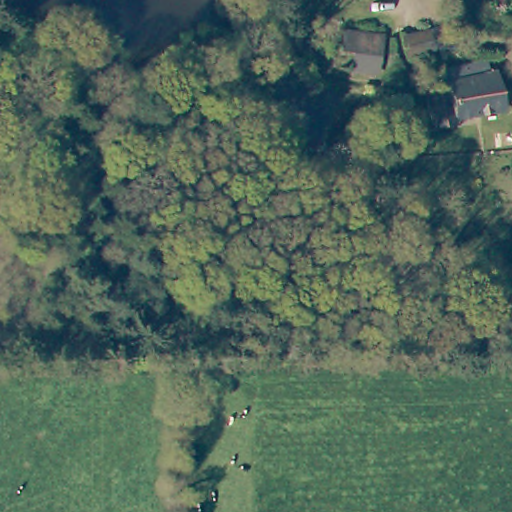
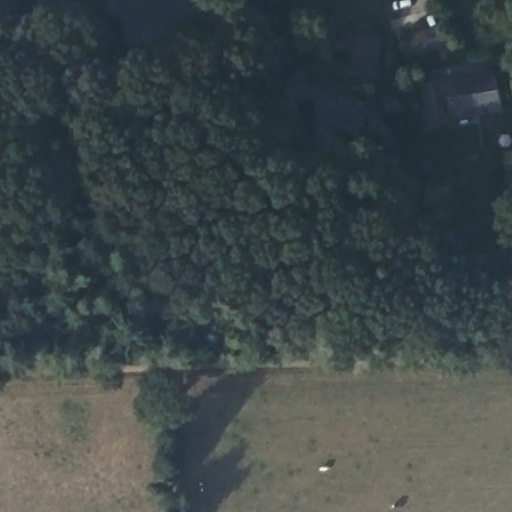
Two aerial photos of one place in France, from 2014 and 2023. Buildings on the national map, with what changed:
unchanged [(378,39),(372,76),(347,73),(353,35),(378,39)]
unchanged [(449,126),(426,130),(418,90),(471,77),(494,72),(502,108),(479,113),(449,120),(449,126)]

